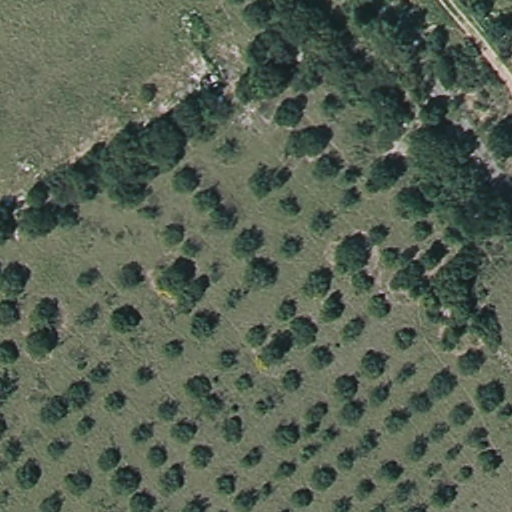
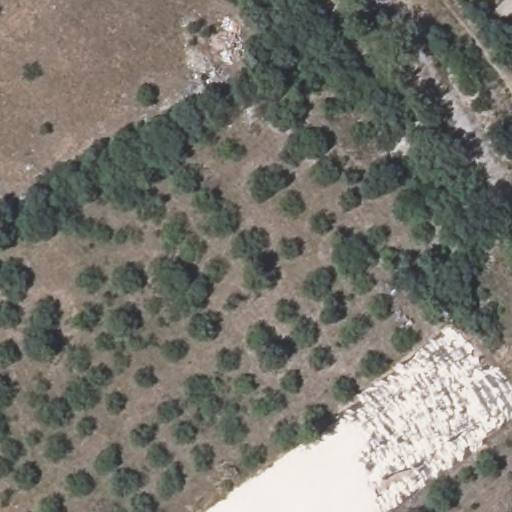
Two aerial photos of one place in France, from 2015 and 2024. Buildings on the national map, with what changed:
[]

